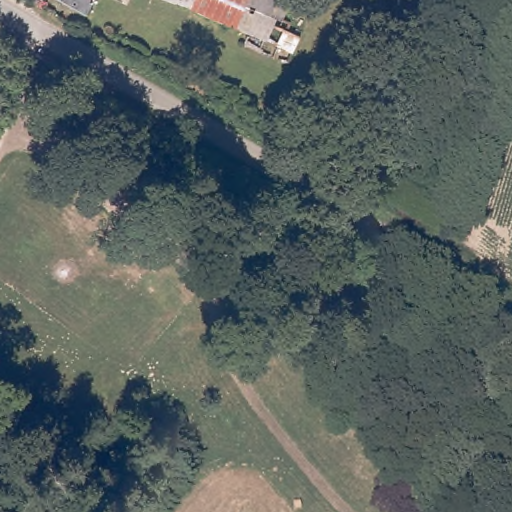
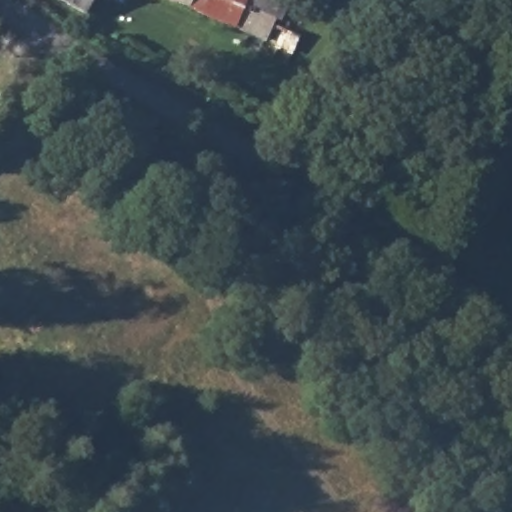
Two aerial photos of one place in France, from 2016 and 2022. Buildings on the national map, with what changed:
unchanged [(70,0),(95,0),(89,11),(70,0)]
unchanged [(230,22),(177,0),(251,0),(240,26),(230,22)]
unchanged [(251,0),(282,0),(286,2),(278,26),(303,36),(297,52),(240,26),(251,0)]

